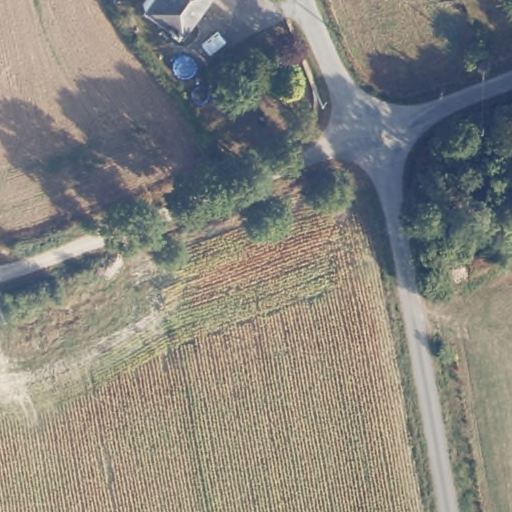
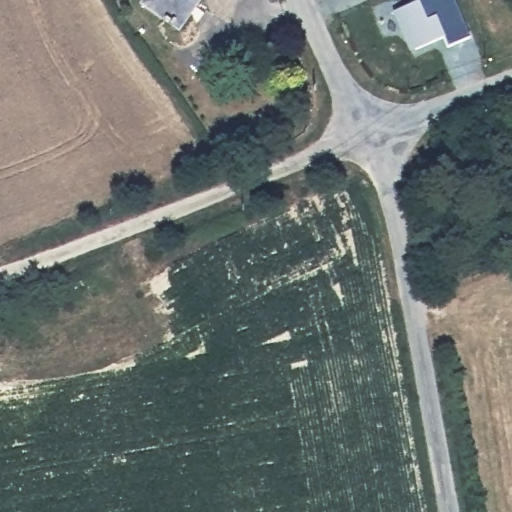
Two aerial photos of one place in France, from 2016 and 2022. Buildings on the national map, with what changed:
unchanged [(190,3),(177,23),(146,2),(148,0),(199,0),(195,6),(190,3)]
new [(456,0),(471,37),(447,46),(444,38),(410,52),(394,10),(416,0),(456,0)]
demolished [(1,369),(0,369),(0,364),(1,369)]

